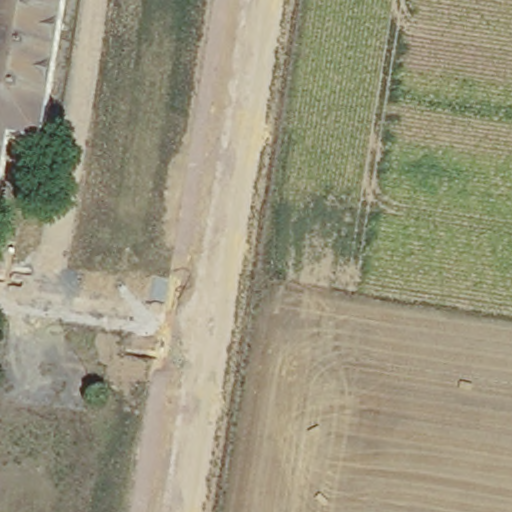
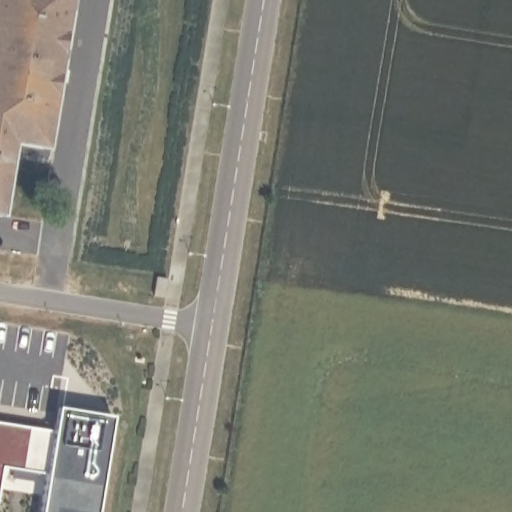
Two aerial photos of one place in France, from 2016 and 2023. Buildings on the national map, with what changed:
unchanged [(1,136),(0,139),(0,0),(57,0),(35,141),(1,136)]
new [(54,423),(114,417),(98,512),(41,512),(47,475),(2,468),(0,478),(0,425),(53,433),(54,423)]

